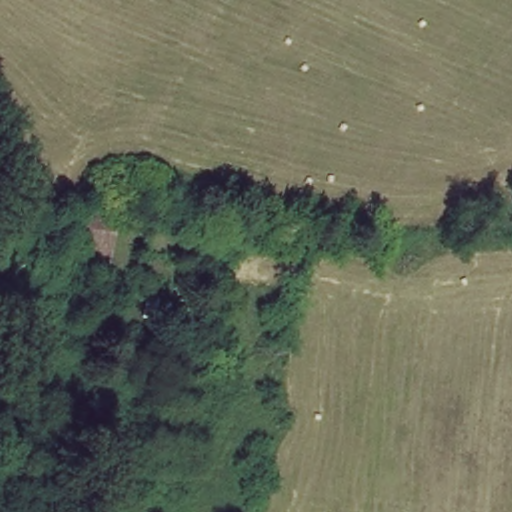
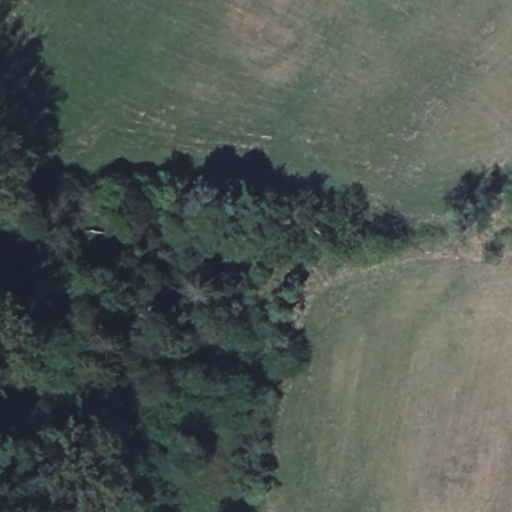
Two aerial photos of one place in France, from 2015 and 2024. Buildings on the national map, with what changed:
unchanged [(65,229),(71,197),(92,202),(96,194),(114,197),(114,204),(122,206),(120,216),(111,215),(107,237),(65,229)]
unchanged [(101,265),(110,265),(108,276),(57,267),(65,229),(107,237),(101,265)]

